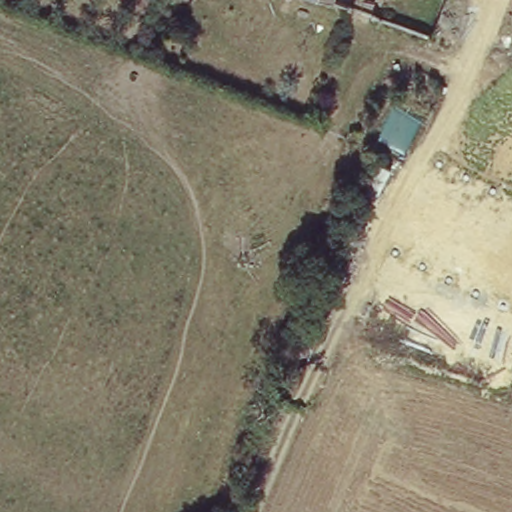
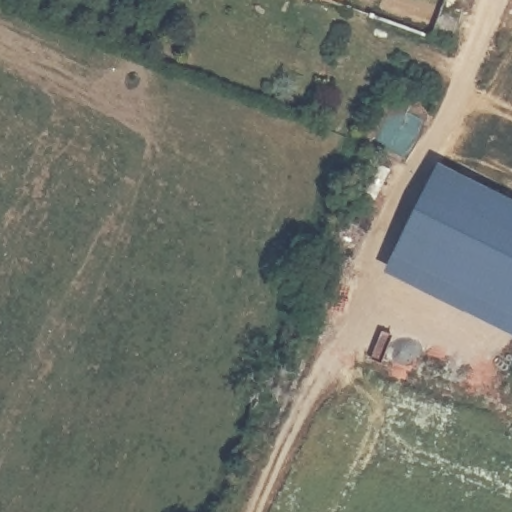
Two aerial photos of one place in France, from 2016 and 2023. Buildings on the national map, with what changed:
unchanged [(318,0),(329,0),(328,4),(318,0)]
new [(512,202),(512,327),(386,270),(437,167),(512,202)]

